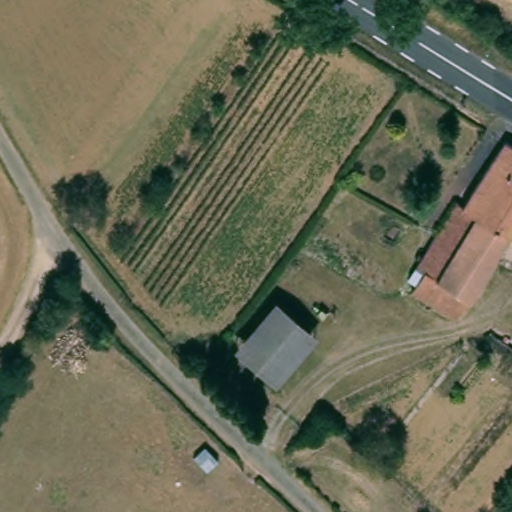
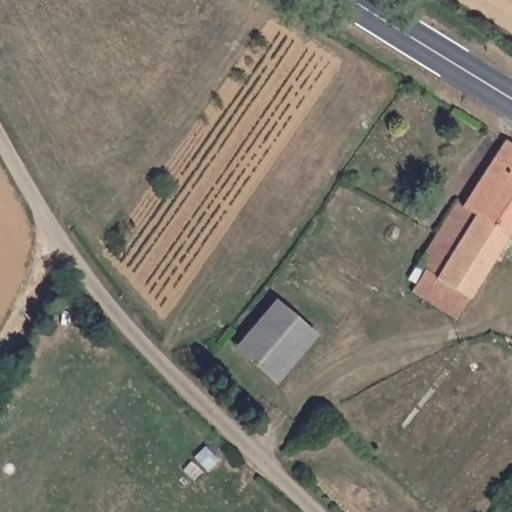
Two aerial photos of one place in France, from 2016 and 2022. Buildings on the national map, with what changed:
unchanged [(463,207),(504,141),(512,146),(512,238),(508,236),(456,320),(412,293),(423,273),(413,267),(456,203),(463,207)]
unchanged [(272,307),(275,306),(313,338),(313,340),(275,384),(235,351),(272,307)]

